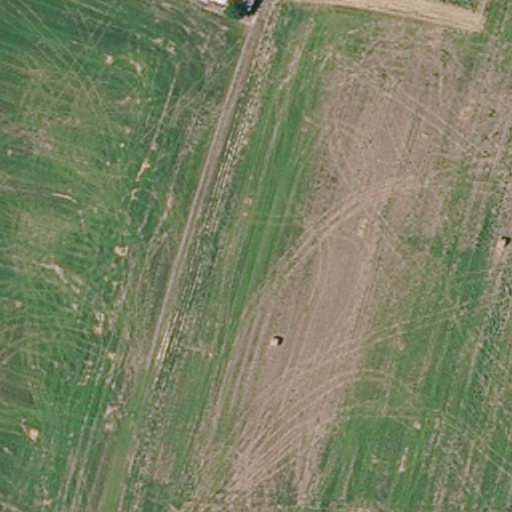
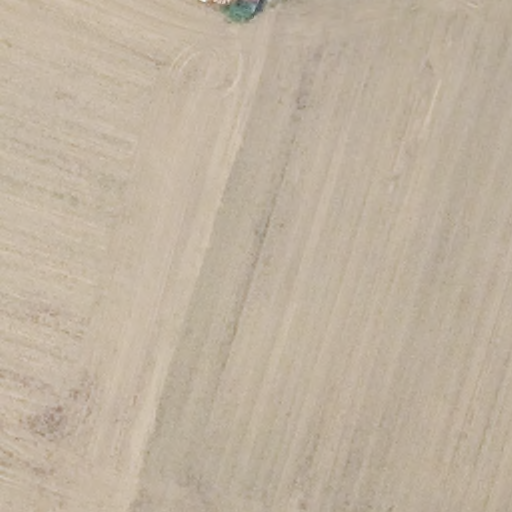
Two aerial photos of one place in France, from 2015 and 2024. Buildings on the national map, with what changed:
unchanged [(214,0),(250,0),(247,10),(214,0)]

